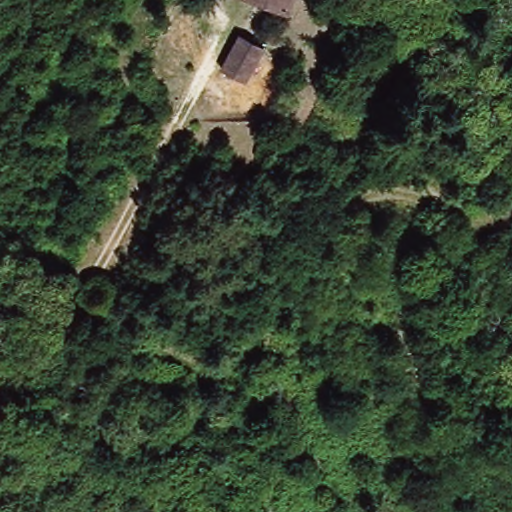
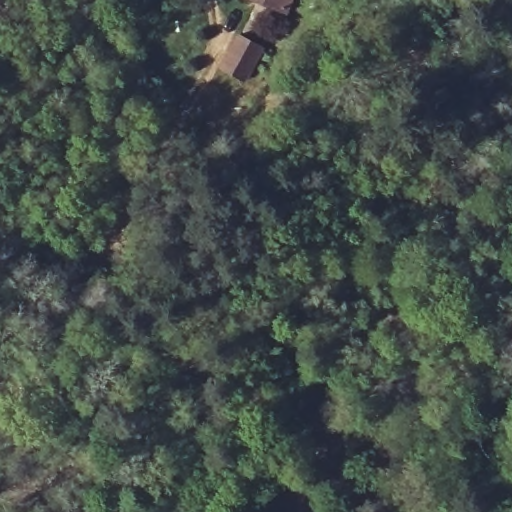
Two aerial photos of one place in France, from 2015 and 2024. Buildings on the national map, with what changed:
unchanged [(241,0),(292,0),(290,13),(241,0)]
unchanged [(270,55),(253,85),(228,71),(245,41),(270,55)]

